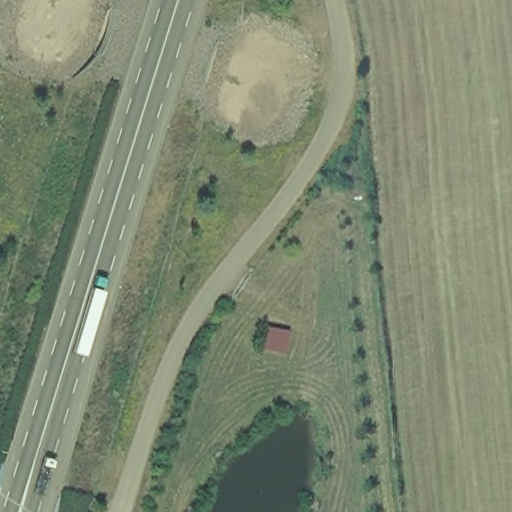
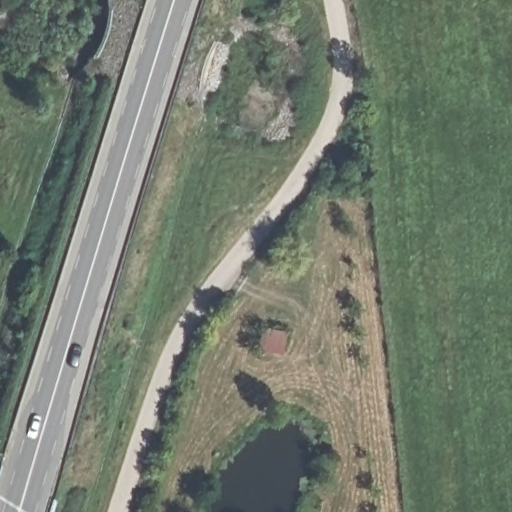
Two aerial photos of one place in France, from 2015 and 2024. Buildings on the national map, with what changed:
unchanged [(285,352),(260,347),(264,326),(288,330),(285,352)]

